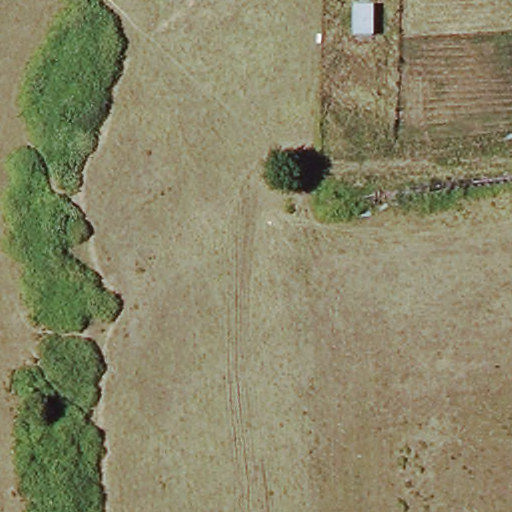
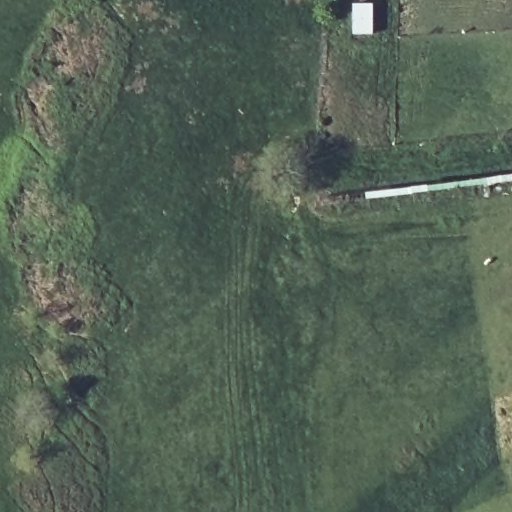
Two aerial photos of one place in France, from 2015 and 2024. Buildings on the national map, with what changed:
unchanged [(373,3),(374,35),(351,35),(351,2),(373,3)]

